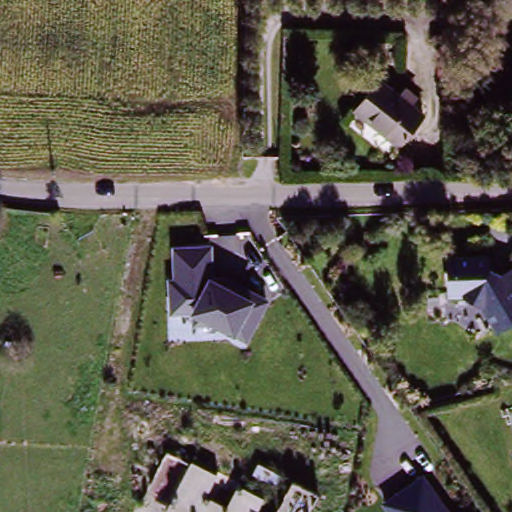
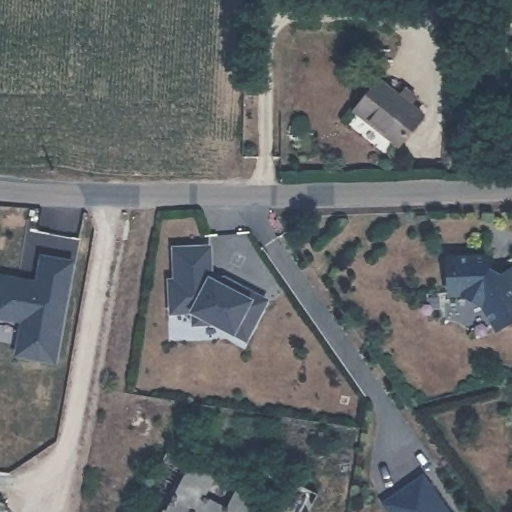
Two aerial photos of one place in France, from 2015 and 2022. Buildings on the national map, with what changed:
unchanged [(413,97),(407,104),(423,116),(398,148),(353,112),(378,81),(396,95),(401,88),(413,97)]
unchanged [(210,245),(212,279),(220,281),(224,274),(271,298),(251,341),(217,324),(192,324),(192,316),(168,315),(166,278),(173,277),(172,246),(210,245)]
new [(37,281),(41,255),(71,260),(54,360),(16,353),(23,319),(0,315),(0,275),(29,280),(37,281)]
unchanged [(488,266),(500,275),(512,269),(512,320),(509,321),(507,316),(494,324),(481,302),(465,293),(450,293),(450,276),(449,256),(455,256),(488,256),(488,266)]
unchanged [(217,475),(206,495),(228,506),(238,485),(266,499),(260,512),(164,512),(166,507),(149,497),(171,452),(217,475)]
unchanged [(284,490),(253,471),(258,464),(317,495),(309,512),(273,512),(284,490)]
unchanged [(450,512),(390,512),(384,503),(424,475),(450,512)]

